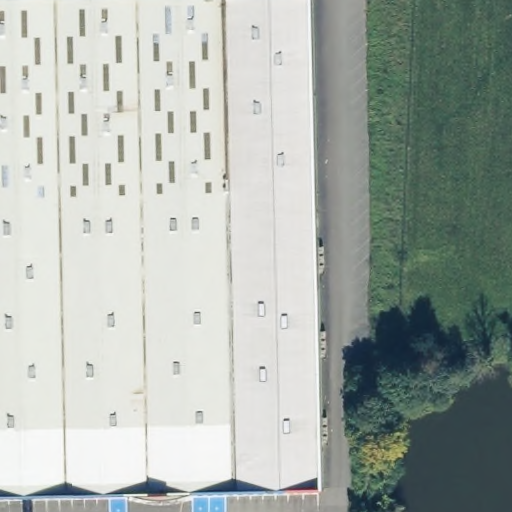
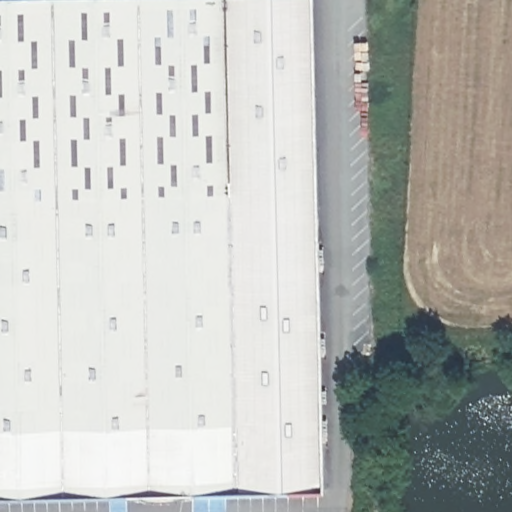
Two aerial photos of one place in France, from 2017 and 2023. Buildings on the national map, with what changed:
unchanged [(1,0),(318,0),(327,493),(0,501),(0,1),(1,1),(1,0)]

